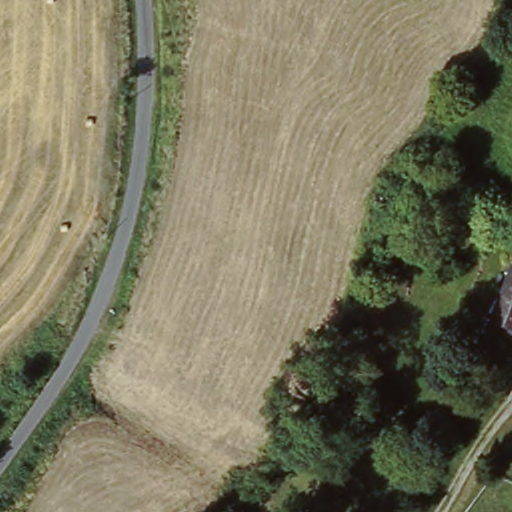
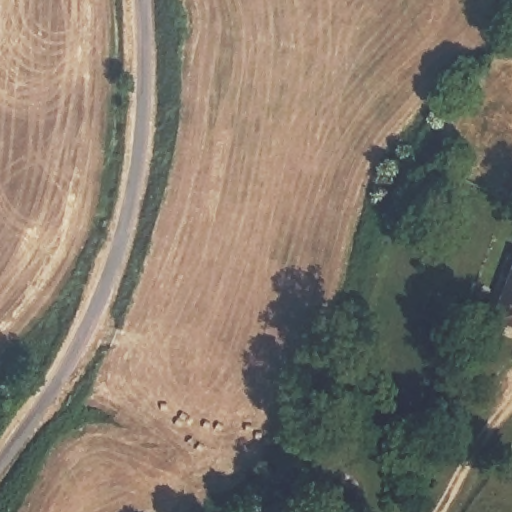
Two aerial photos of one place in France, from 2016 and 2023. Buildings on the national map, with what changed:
unchanged [(484,327),(512,269),(512,337),(510,340),(484,327)]

